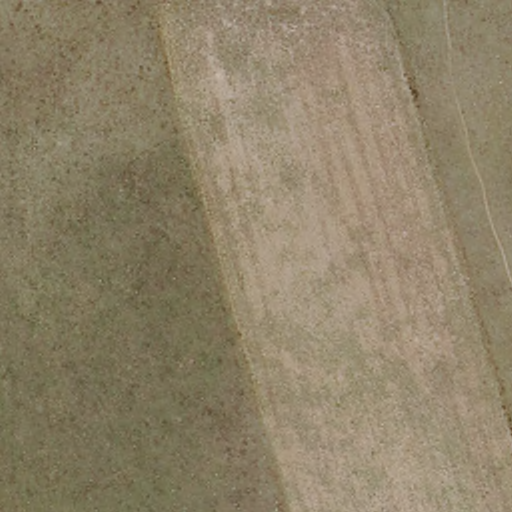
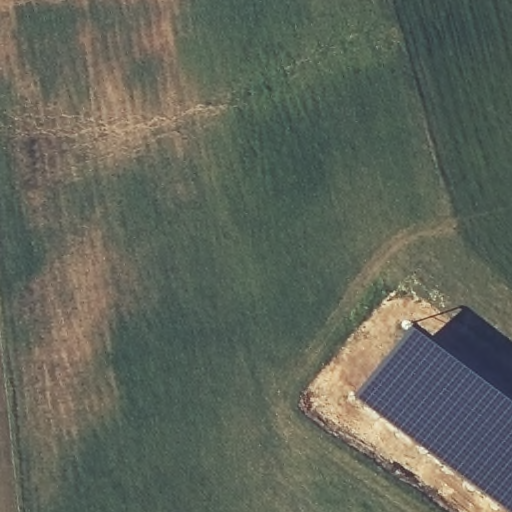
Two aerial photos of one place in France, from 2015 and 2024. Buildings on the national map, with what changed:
new [(402,327),(512,409),(512,512),(506,512),(351,394),(402,327)]

